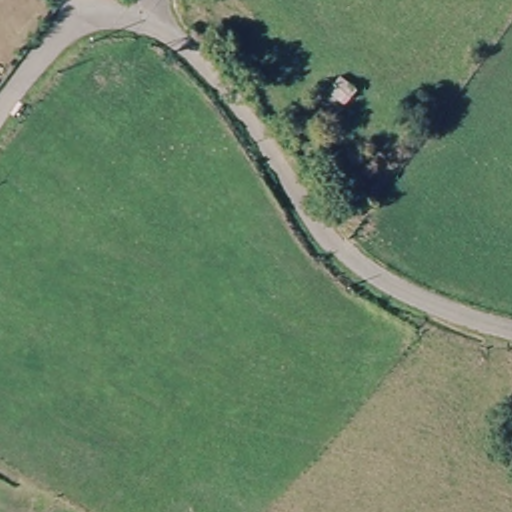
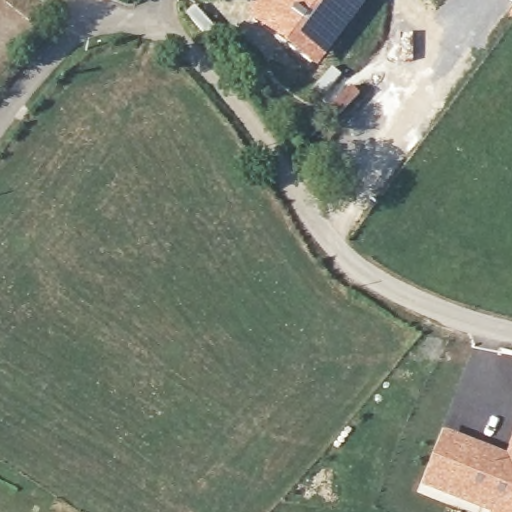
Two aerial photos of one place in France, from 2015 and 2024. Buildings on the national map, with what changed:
unchanged [(108,0),(107,1),(104,0),(108,0)]
new [(368,0),(317,68),(246,15),(257,0),(368,0)]
unchanged [(325,96),(341,78),(360,93),(342,111),(325,96)]
new [(512,438),(512,512),(489,512),(422,485),(445,429),(505,453),(512,438)]

